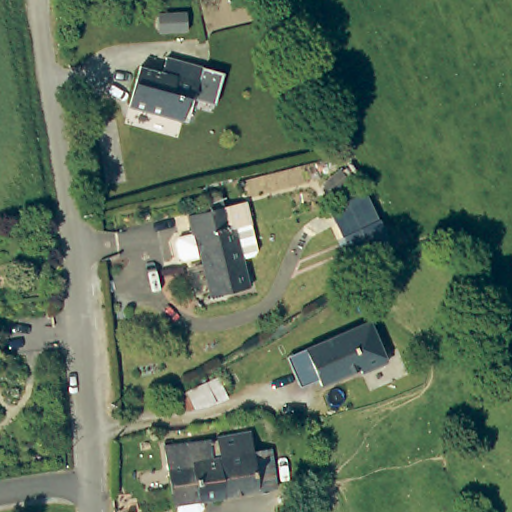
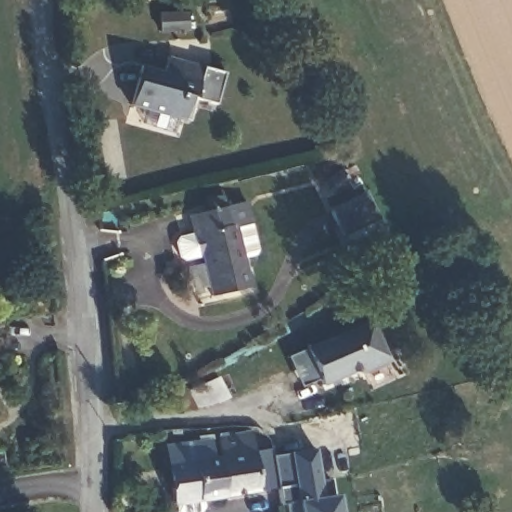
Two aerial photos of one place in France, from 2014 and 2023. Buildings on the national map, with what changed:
unchanged [(182,32),(153,34),(151,15),(181,14),(182,32)]
unchanged [(155,72),(158,58),(216,70),(209,103),(182,97),(177,120),(123,108),(132,67),(155,72)]
unchanged [(347,246),(340,233),(324,206),(360,187),(374,213),(371,215),(379,230),(347,246)]
unchanged [(199,199),(218,195),(221,206),(227,205),(232,226),(248,223),(254,250),(252,254),(239,257),(247,287),(209,296),(199,255),(181,259),(177,256),(173,242),(176,238),(191,234),(186,215),(202,211),(199,199)]
unchanged [(311,386),(305,374),(286,382),(275,359),(294,350),(357,320),(376,360),(351,372),(349,368),(334,375),(325,379),(311,386)]
unchanged [(166,402),(207,383),(215,401),(198,409),(172,415),(166,402)]
unchanged [(213,459),(215,458),(221,458),(218,441),(218,438),(252,433),(255,452),(273,453),(280,492),(223,500),(205,502),(206,510),(204,512),(177,512),(176,504),(173,505),(169,473),(165,447),(210,441),(213,459)]
new [(315,449),(320,482),(328,480),(330,495),(337,494),(339,512),(287,512),(286,505),(282,505),(280,492),(274,457),(290,454),(315,449)]

